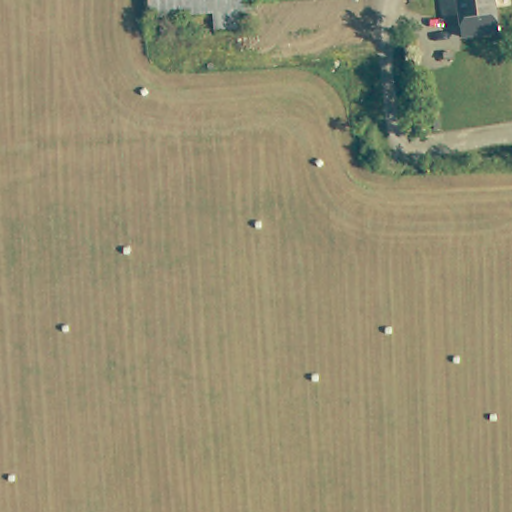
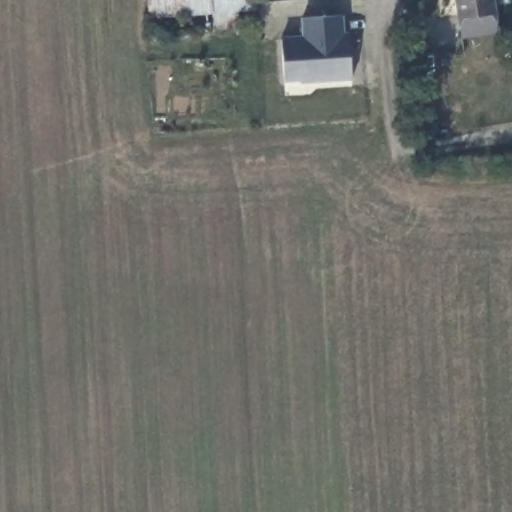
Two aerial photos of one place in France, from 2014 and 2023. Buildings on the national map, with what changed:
unchanged [(257,6),(245,8),(246,26),(215,29),(213,15),(150,17),(147,0),(257,0),(257,6)]
unchanged [(501,32),(462,39),(457,0),(496,0),(497,6),(501,32)]
new [(345,32),(350,32),(353,80),(301,83),(301,81),(285,82),(281,36),(303,35),(303,17),(344,15),(345,32)]

